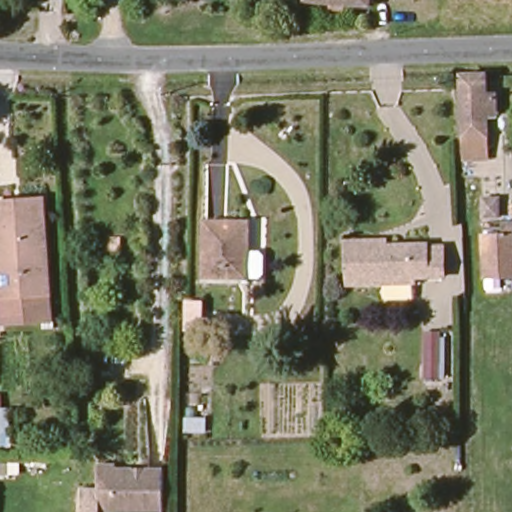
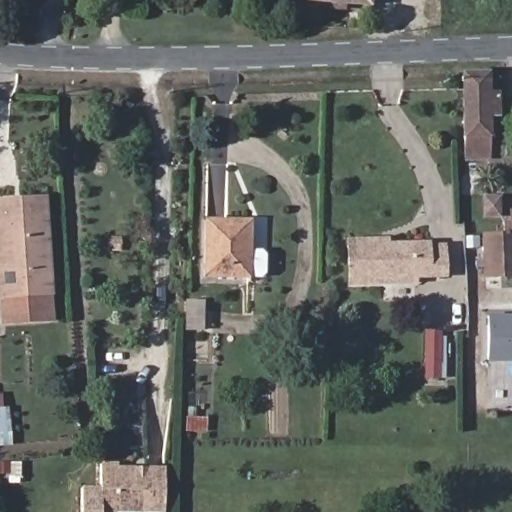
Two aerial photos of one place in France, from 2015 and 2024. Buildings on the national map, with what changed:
unchanged [(310,4),(310,0),(374,0),(373,10),(310,4)]
unchanged [(268,12),(268,18),(260,18),(261,12),(268,12)]
unchanged [(463,77),(487,77),(487,99),(497,99),(497,115),(488,116),(489,157),(489,161),(461,162),(461,157),(466,158),(463,77)]
unchanged [(0,204),(43,201),(51,321),(9,324),(2,325),(0,299),(0,204)]
unchanged [(257,276),(247,277),(205,276),(207,223),(210,223),(248,224),(247,254),(257,254),(257,276)]
unchanged [(487,286),(486,245),(503,245),(503,233),(512,233),(512,286),(487,286)]
unchanged [(387,243),(387,249),(433,246),(433,249),(449,249),(450,278),(421,280),(421,285),(354,286),(352,244),(387,243)]
new [(487,363),(486,315),(512,314),(512,363),(487,363)]
unchanged [(439,336),(440,382),(425,382),(423,336),(439,336)]
unchanged [(3,435),(0,435),(0,399),(1,398),(3,435)]
unchanged [(117,466),(117,470),(165,470),(164,512),(99,512),(100,466),(117,466)]

